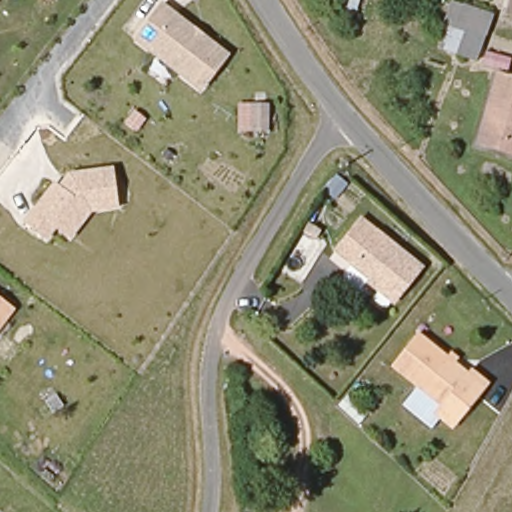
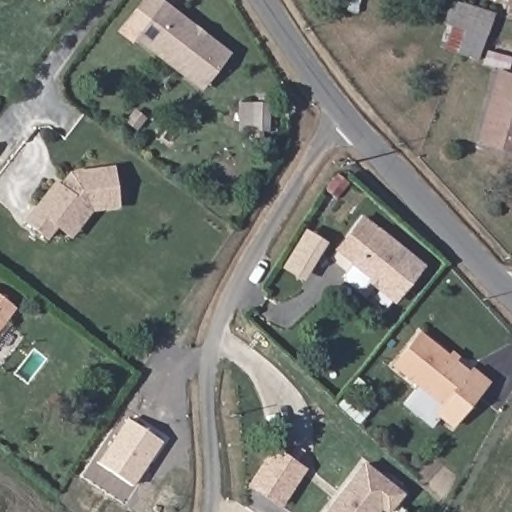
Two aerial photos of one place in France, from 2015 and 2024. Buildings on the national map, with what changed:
unchanged [(46,0),(49,0),(48,1),(46,0)]
unchanged [(512,0),(512,10),(509,9),(512,0)]
unchanged [(475,61),(435,44),(450,1),(490,16),(475,61)]
unchanged [(203,91),(137,40),(164,5),(230,56),(203,91)]
unchanged [(512,151),(475,141),(495,71),(512,75),(512,151)]
unchanged [(120,211),(91,213),(71,242),(56,231),(47,243),(23,223),(55,182),(60,188),(72,171),(113,166),(120,211)]
unchanged [(395,296),(380,285),(364,281),(363,272),(350,263),(352,259),(334,245),(354,218),(418,264),(395,296)]
unchanged [(16,309),(0,330),(0,296),(16,309)]
unchanged [(460,421),(435,404),(441,396),(391,361),(415,327),(466,363),(461,370),(483,385),(460,421)]
unchanged [(340,416),(351,404),(365,417),(354,429),(340,416)]
new [(161,442),(131,486),(97,463),(126,419),(161,442)]
new [(273,447),(306,469),(280,510),(246,487),(273,447)]
new [(381,511),(380,512),(325,512),(363,462),(404,494),(390,512),(383,512),(381,511)]

